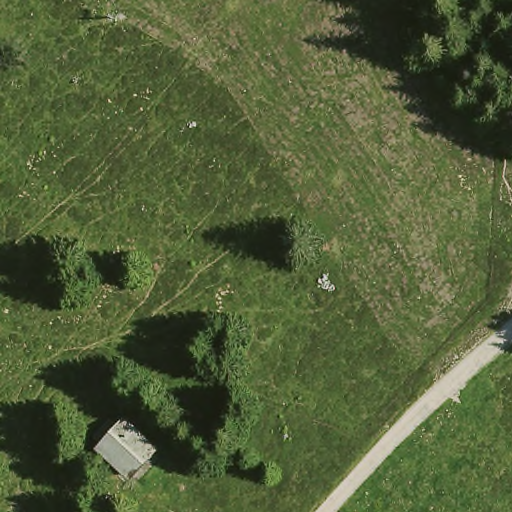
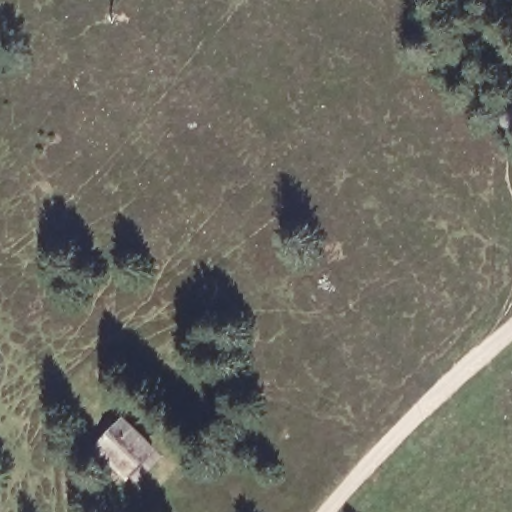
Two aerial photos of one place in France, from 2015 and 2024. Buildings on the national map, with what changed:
unchanged [(101,444),(128,412),(163,447),(136,480),(101,444)]

